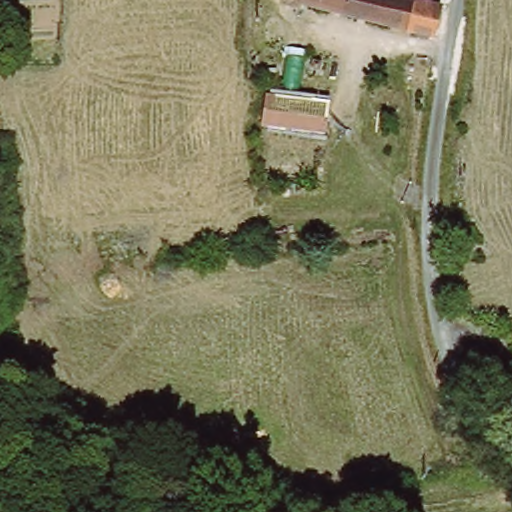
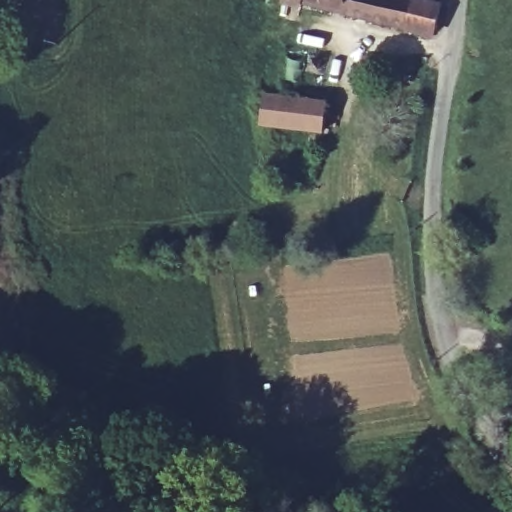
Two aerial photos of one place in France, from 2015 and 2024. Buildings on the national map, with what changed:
unchanged [(287,0),(285,0),(413,0),(444,8),(435,41),(287,0)]
unchanged [(311,72),(294,70),(296,54),(312,57),(311,72)]
unchanged [(267,93),(322,101),(319,131),(263,121),(267,93)]

